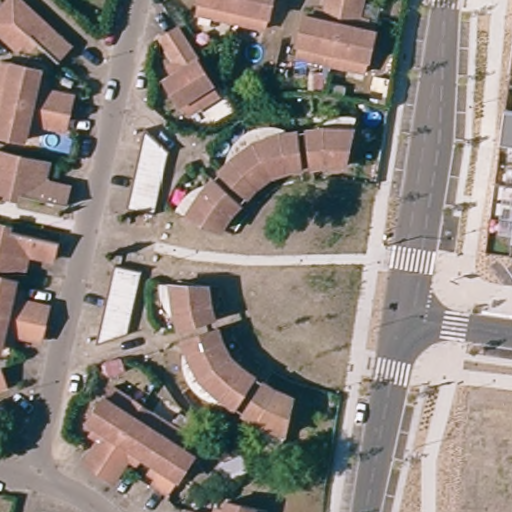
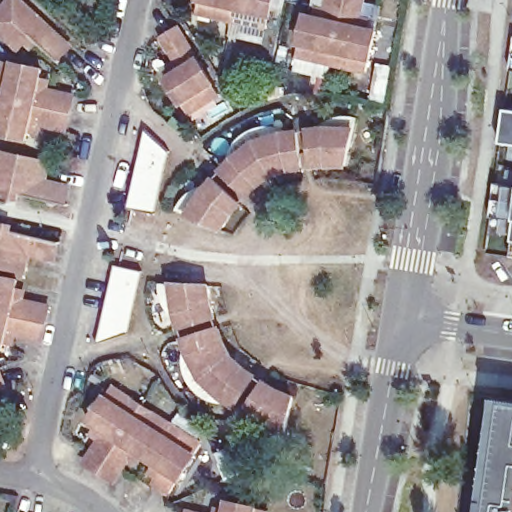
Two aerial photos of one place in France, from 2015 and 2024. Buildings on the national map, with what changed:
unchanged [(64,54),(37,29),(23,43),(0,20),(0,9),(9,0),(32,0),(75,40),(64,54)]
unchanged [(229,14),(194,6),(195,0),(268,0),(264,21),(229,14)]
unchanged [(294,50),(303,10),(320,13),(323,0),(359,0),(354,20),(364,23),(350,62),(294,50)]
unchanged [(372,24),(371,29),(378,30),(372,64),(368,64),(364,74),(292,59),(294,50),(350,62),(364,23),(372,24)]
unchanged [(192,112),(170,79),(185,69),(186,66),(167,37),(183,27),(210,72),(224,92),(192,112)]
unchanged [(44,82),(80,90),(73,123),(36,115),(31,135),(0,127),(0,79),(5,56),(48,66),(44,82)]
unchanged [(511,70),(512,58),(512,70),(511,70)]
unchanged [(502,143),(506,110),(512,111),(512,144),(502,143)]
unchanged [(356,118),(348,155),(322,155),(315,156),(313,118),(334,117),(356,118)]
unchanged [(245,140),(270,127),(298,119),(304,157),(276,162),(264,171),(251,185),(223,160),(245,140)]
unchanged [(173,146),(158,209),(129,202),(148,122),(173,146)]
unchanged [(41,180),(66,186),(61,204),(0,190),(0,153),(44,163),(41,180)]
unchanged [(244,192),(223,219),(190,205),(215,170),(244,192)]
unchanged [(490,217),(494,182),(512,185),(512,220),(490,217)]
unchanged [(59,257),(34,252),(30,272),(0,264),(0,228),(62,242),(59,257)]
unchanged [(146,263),(133,327),(100,340),(118,258),(146,263)]
unchanged [(19,297),(54,305),(50,323),(46,339),(11,331),(8,350),(0,348),(0,274),(23,279),(19,297)]
unchanged [(202,279),(208,310),(173,322),(166,277),(202,279)]
unchanged [(204,375),(196,361),(189,340),(221,327),(234,352),(248,367),(257,373),(238,405),(234,403),(204,375)]
unchanged [(6,380),(0,381),(0,362),(6,380)]
unchanged [(291,395),(284,431),(256,419),(245,412),(263,382),(291,395)]
unchanged [(139,405),(171,427),(199,445),(169,492),(154,483),(162,469),(134,450),(114,481),(96,470),(82,461),(102,430),(87,420),(109,385),(139,405)]
new [(512,390),(512,512),(470,512),(473,492),(482,495),(496,397),(499,388),(512,390)]
unchanged [(250,470),(223,482),(217,465),(240,455),(250,470)]
unchanged [(230,495),(272,504),(269,512),(226,512),(230,495)]
unchanged [(191,506),(204,508),(222,512),(189,512),(191,506)]

